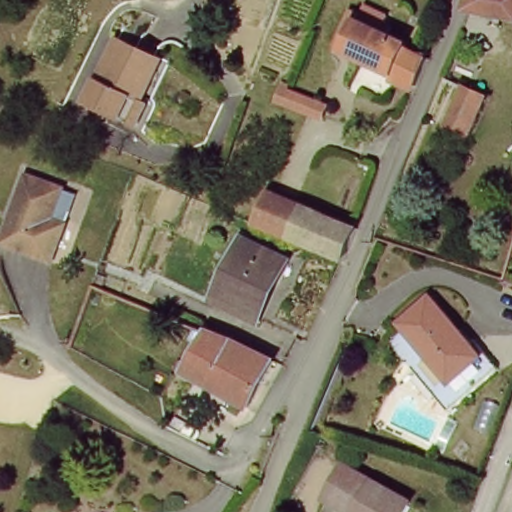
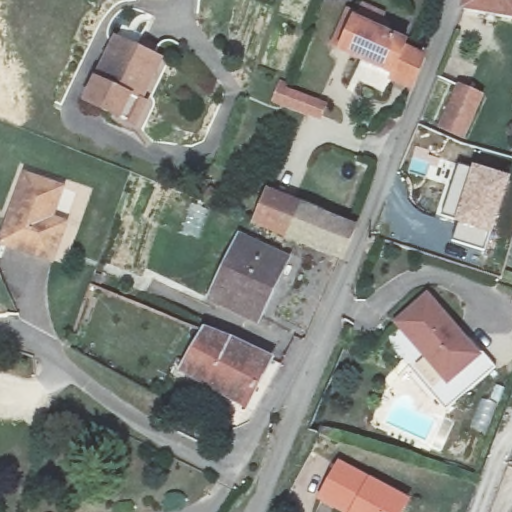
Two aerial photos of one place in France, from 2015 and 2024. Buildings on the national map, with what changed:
unchanged [(472,11),(475,0),(512,0),(512,22),(469,11),(472,11)]
unchanged [(344,48),(358,14),(412,39),(410,45),(430,54),(425,68),(419,81),(344,48)]
unchanged [(103,121),(108,108),(87,101),(113,32),(147,45),(161,50),(145,95),(136,118),(131,131),(103,121)]
unchanged [(484,95),(470,137),(447,129),(461,85),(484,95)]
unchanged [(279,101),(285,87),(331,106),(328,117),(279,101)]
new [(454,162),(472,166),(454,223),(436,217),(454,162)]
new [(457,224),(454,223),(472,166),(512,177),(492,235),(484,250),(452,240),(457,224)]
unchanged [(73,192),(60,223),(74,228),(60,263),(10,244),(36,176),(73,192)]
unchanged [(291,242),(257,229),(270,197),(303,211),(291,242)]
unchanged [(355,232),(343,263),(339,262),(291,242),(303,211),(355,232)]
unchanged [(285,259),(263,319),(216,301),(240,241),(285,259)]
unchanged [(438,291),(491,345),(477,359),(446,390),(392,333),(423,304),(438,291)]
unchanged [(252,409),(188,373),(207,332),(274,361),(252,409)]
unchanged [(393,512),(332,512),(316,507),(326,474),(397,494),(393,512)]

